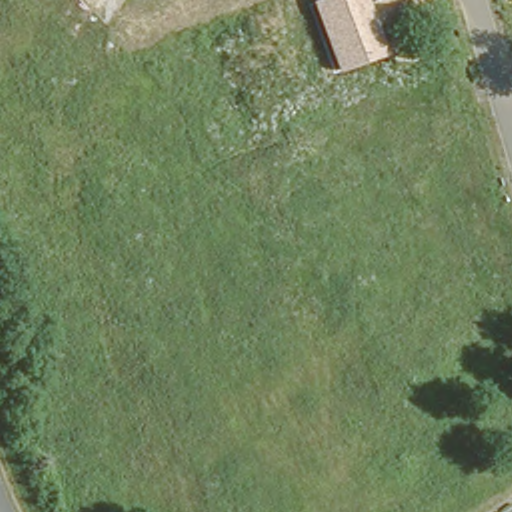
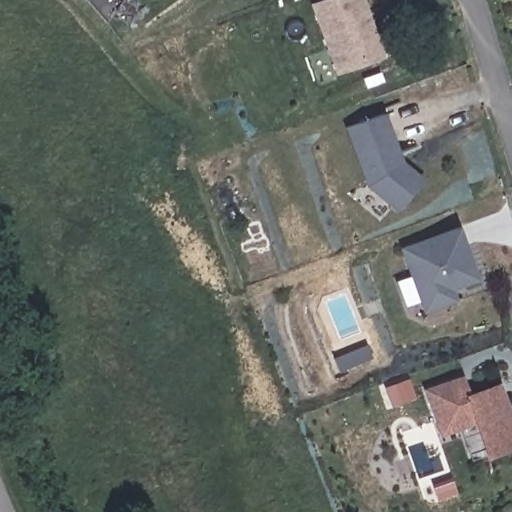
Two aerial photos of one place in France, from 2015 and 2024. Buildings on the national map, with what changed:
unchanged [(382,55),(335,72),(310,4),(321,0),(362,0),(382,55)]
new [(397,209),(367,186),(346,127),(386,112),(403,163),(423,177),(397,209)]
new [(457,301),(424,313),(400,248),(460,226),(479,280),(453,289),(457,301)]
new [(485,458),(474,426),(440,437),(423,389),(462,375),(469,391),(501,380),(512,412),(512,449),(485,458)]

